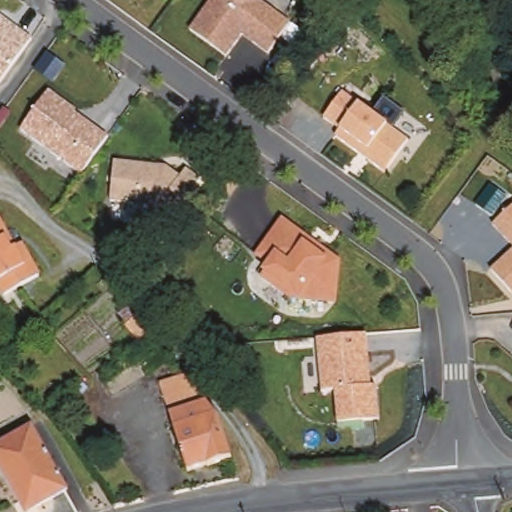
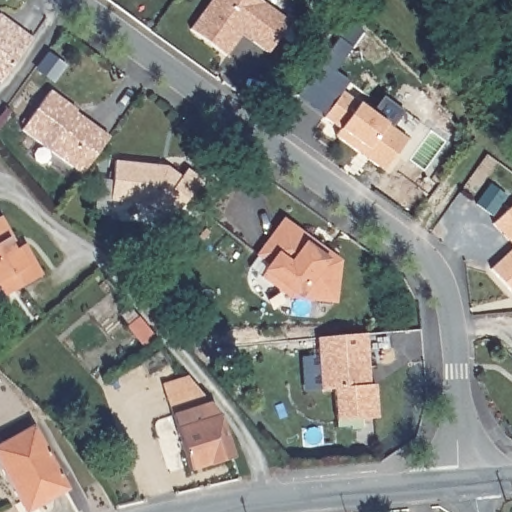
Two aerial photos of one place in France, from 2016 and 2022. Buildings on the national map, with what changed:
unchanged [(292,21),(268,54),(239,35),(226,55),(189,34),(213,0),(259,0),(292,21)]
unchanged [(0,81),(0,20),(31,39),(0,81)]
unchanged [(105,137),(80,175),(22,130),(51,92),(105,137)]
unchanged [(407,137),(386,173),(339,132),(326,118),(345,93),(407,137)]
unchanged [(189,168),(182,214),(110,207),(114,161),(189,168)]
unchanged [(491,229),(512,207),(512,248),(491,229)]
unchanged [(6,241),(10,251),(23,244),(44,275),(11,296),(3,286),(0,288),(0,220),(11,238),(6,241)]
unchanged [(341,259),(337,306),(290,302),(259,281),(267,265),(267,264),(254,257),(281,222),(341,259)]
unchanged [(490,271),(512,249),(512,291),(490,271)]
unchanged [(164,337),(153,348),(135,326),(146,317),(164,337)]
unchanged [(367,336),(370,385),(378,385),(380,420),(337,424),(333,389),(320,389),(317,340),(367,336)]
unchanged [(189,373),(217,406),(230,454),(189,468),(173,424),(174,423),(170,413),(158,382),(188,371),(189,373)]
unchanged [(0,442),(28,428),(64,492),(26,512),(23,512),(0,472),(0,442)]

